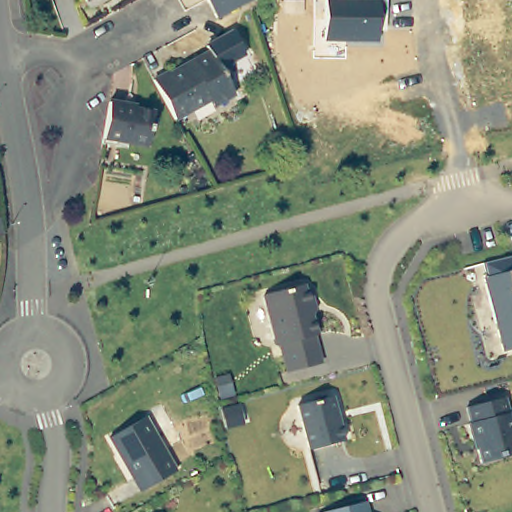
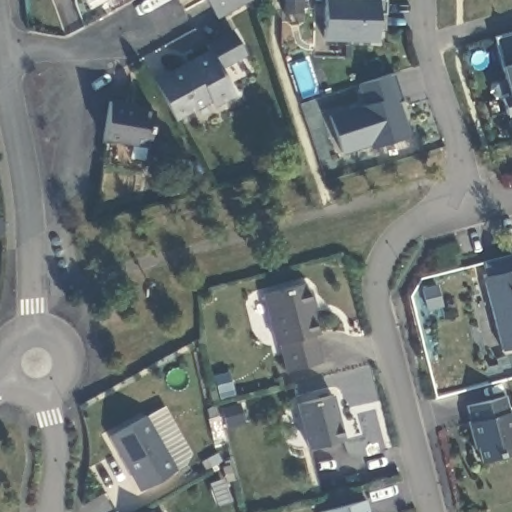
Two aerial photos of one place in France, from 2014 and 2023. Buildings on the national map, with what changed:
unchanged [(85,1),(84,0),(85,0),(85,1)]
unchanged [(218,16),(208,0),(244,0),(218,16)]
unchanged [(385,30),(378,29),(377,43),(324,42),(324,0),(384,0),(385,30)]
unchanged [(206,44),(234,29),(247,55),(220,68),(208,48),(206,44)]
new [(502,99),(511,96),(505,67),(495,38),(512,33),(512,116),(508,117),(502,99)]
unchanged [(168,68),(172,74),(191,63),(188,59),(208,48),(234,94),(215,104),(210,97),(175,117),(153,76),(168,68)]
new [(329,115),(365,104),(359,84),(396,73),(404,101),(400,103),(410,136),(373,148),(371,145),(343,154),(329,115)]
unchanged [(128,103),(127,108),(151,112),(146,143),(103,136),(108,100),(128,103)]
unchanged [(512,271),(512,350),(504,352),(484,279),(512,271)]
unchanged [(306,285),(307,287),(312,290),(315,302),(312,307),(319,335),(316,336),(323,363),(289,372),(282,344),(279,345),(266,295),(306,285)]
unchanged [(335,397),(346,439),(312,448),(301,406),(335,397)]
unchanged [(506,398),(512,420),(512,455),(481,463),(476,441),(473,442),(467,420),(470,420),(467,407),(506,398)]
unchanged [(148,417),(177,470),(141,491),(111,438),(148,417)]
unchanged [(370,512),(320,512),(320,510),(367,497),(370,512)]

